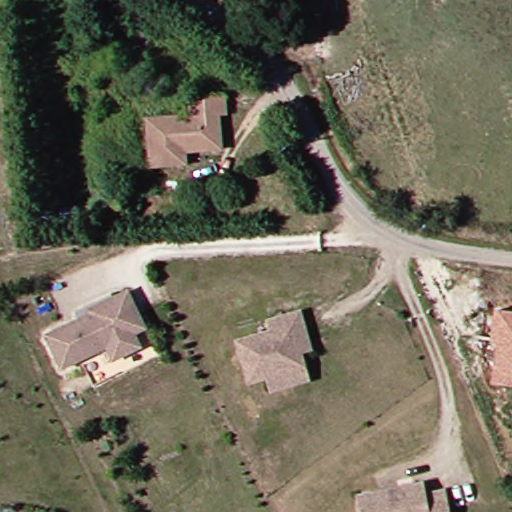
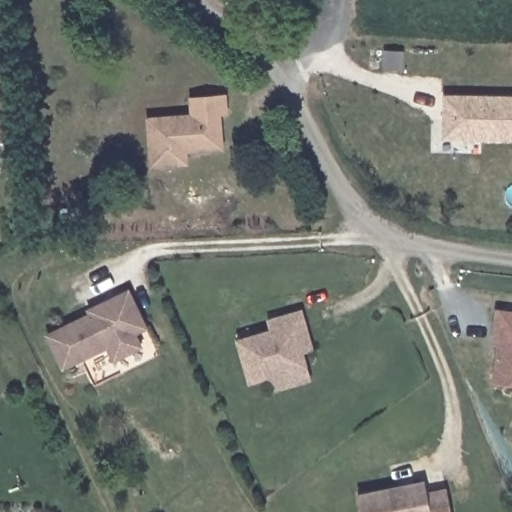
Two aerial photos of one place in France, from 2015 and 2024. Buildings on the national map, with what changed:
unchanged [(192,95),(226,90),(229,110),(222,111),(227,140),(191,149),(194,164),(159,169),(150,123),(195,115),(192,95)]
new [(443,95),(512,97),(512,143),(442,141),(443,95)]
unchanged [(148,324),(136,329),(143,343),(116,356),(109,342),(77,358),(65,364),(49,332),(61,325),(92,310),(91,307),(96,304),(130,288),(138,305),(148,324)]
unchanged [(512,312),(512,387),(493,384),(498,347),(491,345),(496,310),(512,312)]
unchanged [(273,377),(254,382),(242,339),(276,331),(273,319),(307,312),(312,329),(317,349),(307,352),(311,367),(315,380),(276,390),(273,377)]
unchanged [(362,491),(429,478),(431,489),(451,485),(456,512),(366,512),(362,491)]

